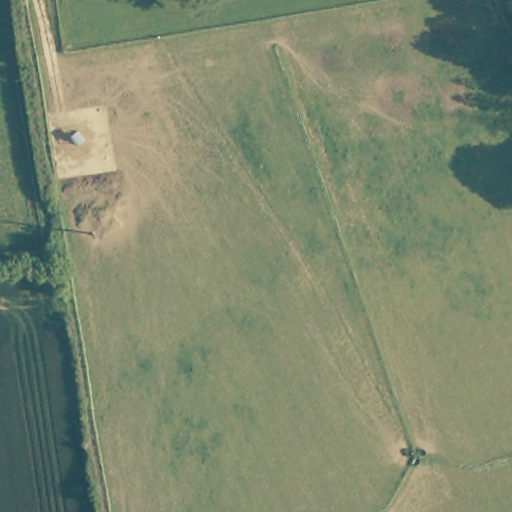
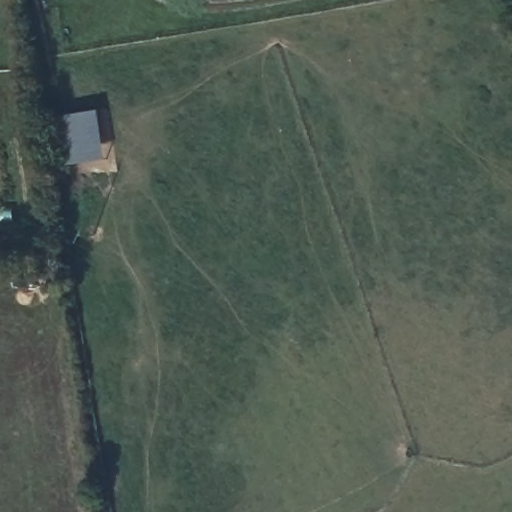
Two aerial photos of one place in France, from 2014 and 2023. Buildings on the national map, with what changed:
new [(106,159),(57,167),(48,117),(98,110),(106,159)]

